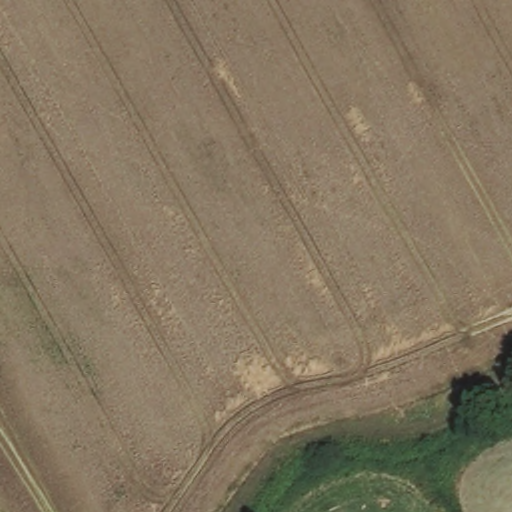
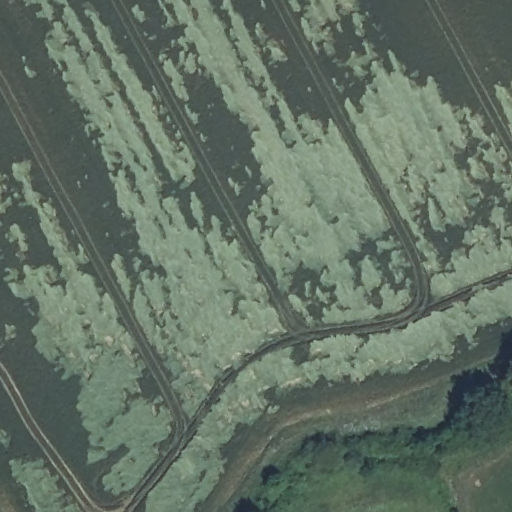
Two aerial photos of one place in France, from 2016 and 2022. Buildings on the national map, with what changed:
[]

